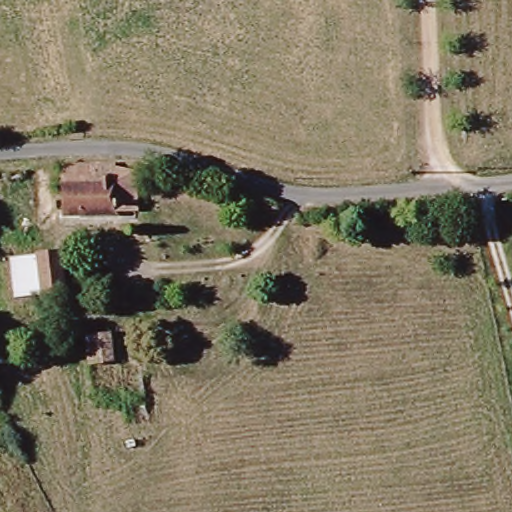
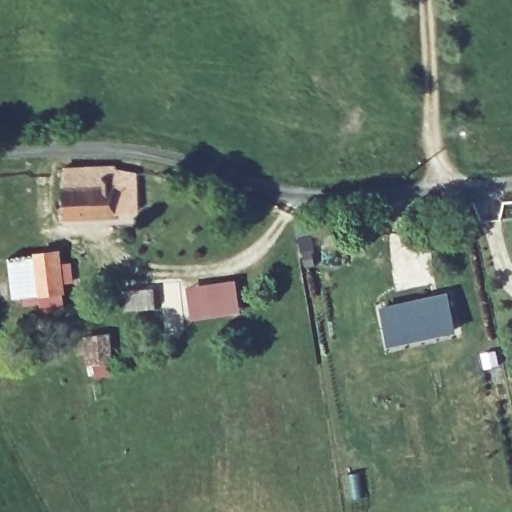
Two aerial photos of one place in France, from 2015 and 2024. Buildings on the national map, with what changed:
unchanged [(54,166),(112,164),(112,168),(135,173),(138,210),(108,211),(107,216),(57,215),(54,166)]
unchanged [(65,248),(71,297),(46,297),(39,250),(65,248)]
unchanged [(39,250),(46,297),(9,298),(3,255),(39,250)]
new [(236,279),(241,313),(190,322),(184,286),(236,279)]
new [(153,286),(155,309),(118,312),(115,291),(153,286)]
new [(456,331),(388,346),(380,308),(447,292),(456,331)]
unchanged [(88,366),(86,338),(107,336),(109,364),(88,366)]

